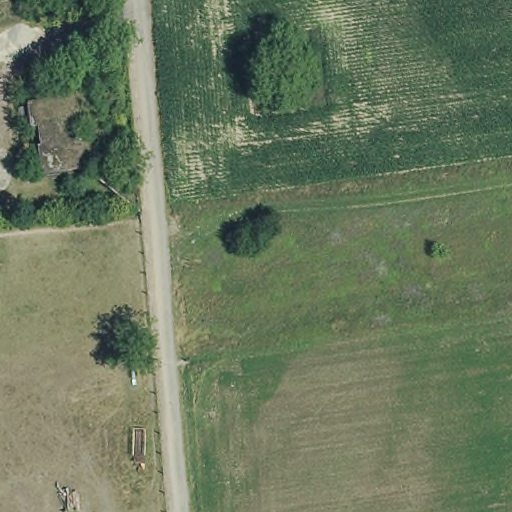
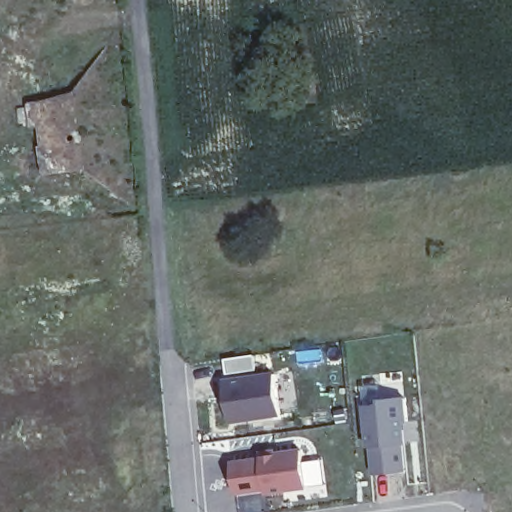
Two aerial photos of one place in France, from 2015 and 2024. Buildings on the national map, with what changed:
unchanged [(94,85),(111,157),(48,172),(29,102),(94,85)]
new [(288,414),(238,421),(228,357),(259,353),(261,372),(281,370),(288,414)]
new [(368,475),(366,448),(359,448),(356,403),(370,402),(370,398),(403,397),(404,421),(419,420),(421,443),(403,444),(405,473),(368,475)]
new [(314,489),(271,494),(271,491),(241,494),(236,463),(267,459),(266,453),(307,447),(314,489)]

